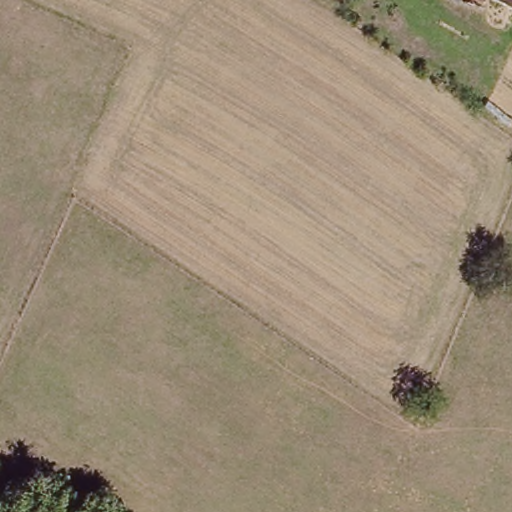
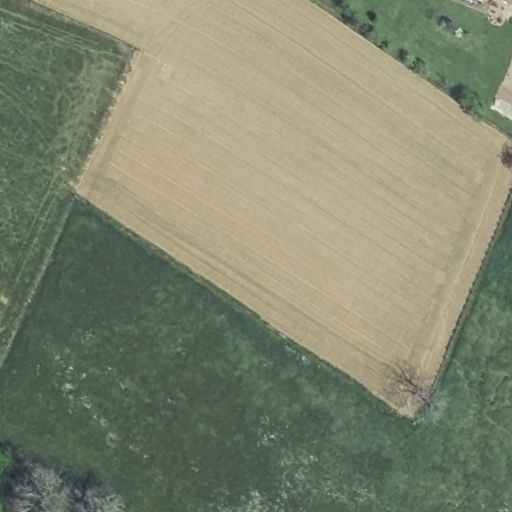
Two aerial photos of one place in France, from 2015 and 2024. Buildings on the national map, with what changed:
unchanged [(483,1),(481,0),(484,0),(483,1)]
unchanged [(512,1),(511,0),(512,0),(512,1)]

